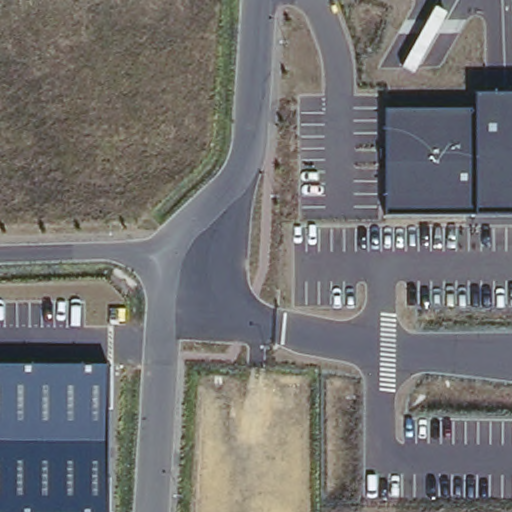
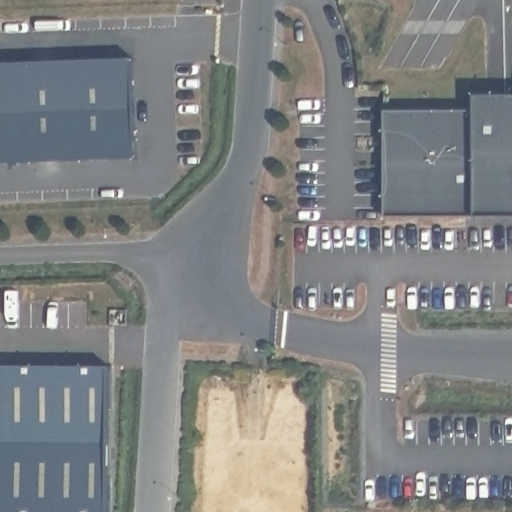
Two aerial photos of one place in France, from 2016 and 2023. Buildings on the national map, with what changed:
new [(129,54),(129,161),(0,164),(0,57),(129,54)]
unchanged [(386,215),(385,112),(476,110),(476,97),(512,96),(512,213),(475,213),(386,215)]
unchanged [(107,366),(107,512),(0,512),(0,365),(107,366)]

